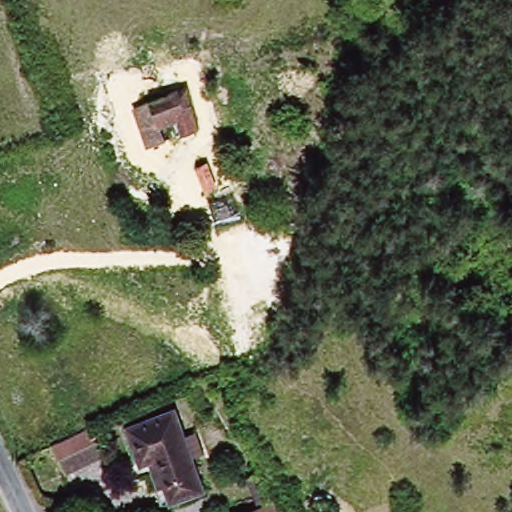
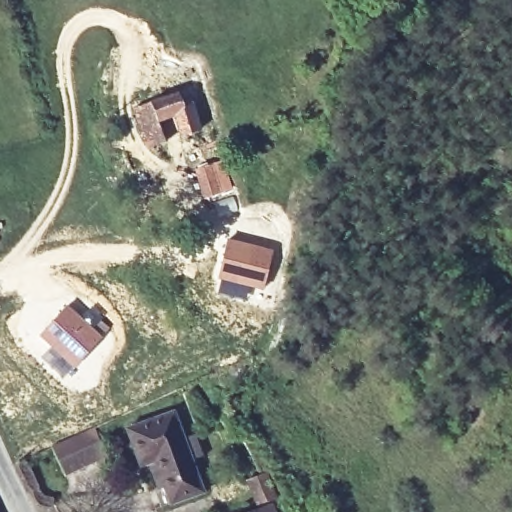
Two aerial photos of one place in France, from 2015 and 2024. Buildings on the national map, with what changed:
unchanged [(200,140),(182,147),(171,120),(156,126),(162,140),(148,145),(135,107),(181,90),(200,140)]
new [(215,164),(220,196),(204,200),(195,167),(215,164)]
new [(227,237),(274,248),(264,290),(218,279),(227,237)]
demolished [(504,274),(488,287),(477,275),(494,262),(504,274)]
new [(68,304),(92,325),(101,316),(111,326),(62,379),(40,357),(49,346),(38,335),(68,304)]
unchanged [(173,509),(154,466),(134,475),(120,441),(116,431),(163,410),(168,419),(202,495),(173,509)]
unchanged [(58,474),(46,446),(95,426),(105,455),(58,474)]
unchanged [(275,468),(285,492),(260,505),(250,479),(275,468)]
unchanged [(262,512),(243,512),(260,505),(262,512)]

